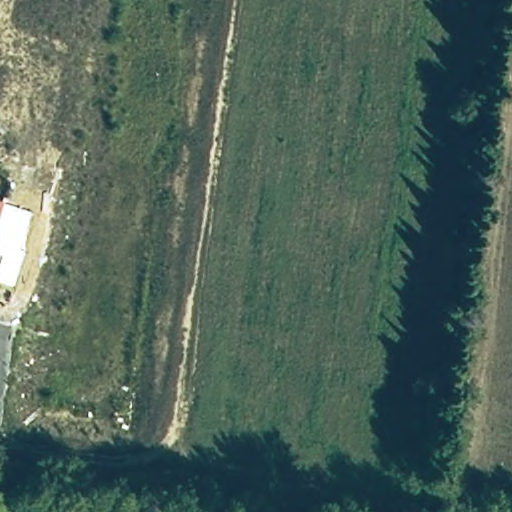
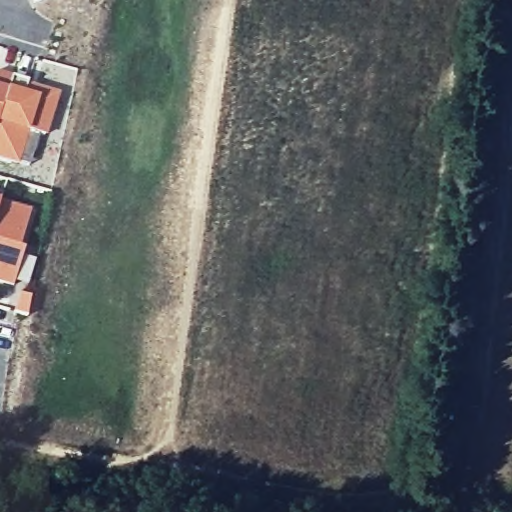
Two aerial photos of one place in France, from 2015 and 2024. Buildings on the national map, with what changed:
new [(0,115),(0,74),(12,77),(0,115)]
new [(59,92),(46,137),(39,135),(29,168),(0,160),(0,115),(12,77),(59,92)]
unchanged [(0,201),(2,201),(0,208),(0,201)]
new [(31,210),(20,248),(25,249),(12,289),(0,285),(0,208),(2,201),(31,210)]

